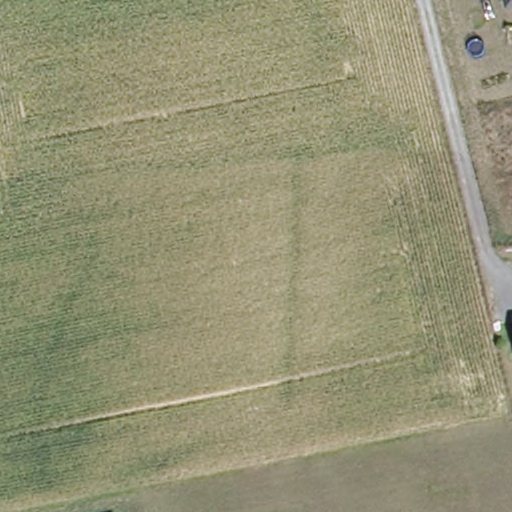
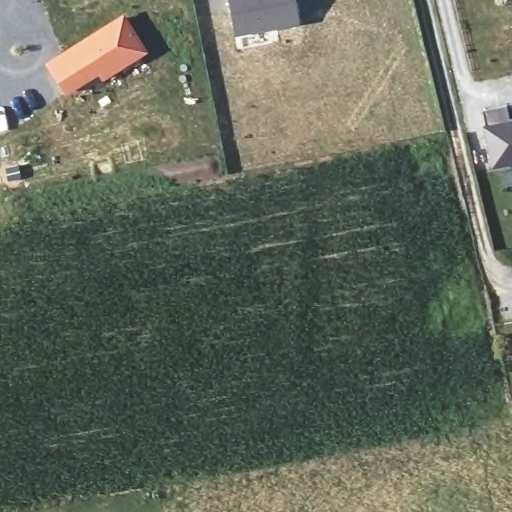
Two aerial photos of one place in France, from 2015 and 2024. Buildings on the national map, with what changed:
new [(301,26),(235,38),(227,0),(296,0),(301,26)]
new [(124,12),(149,52),(102,82),(97,77),(65,96),(44,63),(124,12)]
new [(491,171),(482,128),(487,127),(483,112),(505,107),(509,119),(512,118),(512,166),(491,171)]

